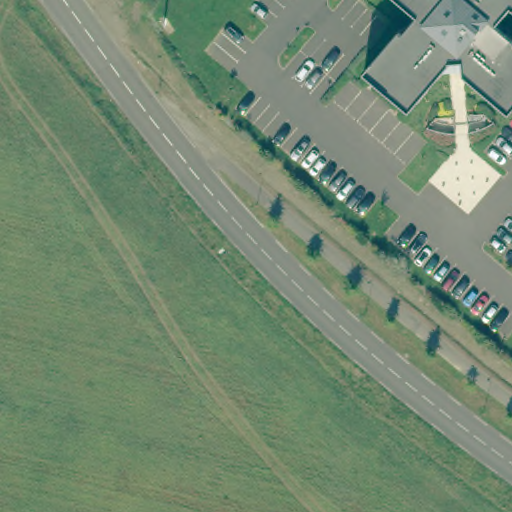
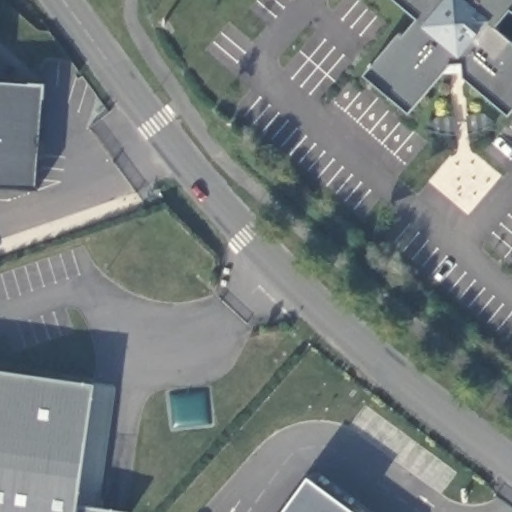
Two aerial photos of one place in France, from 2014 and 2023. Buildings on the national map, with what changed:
unchanged [(510,10),(496,27),(512,41),(512,111),(508,115),(462,77),(462,63),(451,64),(408,113),(363,75),(398,33),(402,35),(417,19),(394,0),(512,0),(512,12),(510,10)]
new [(37,189),(0,188),(0,82),(44,85),(37,189)]
new [(76,506),(113,512),(0,512),(0,372),(94,385),(76,506)]
new [(307,477),(353,512),(282,512),(307,477)]

